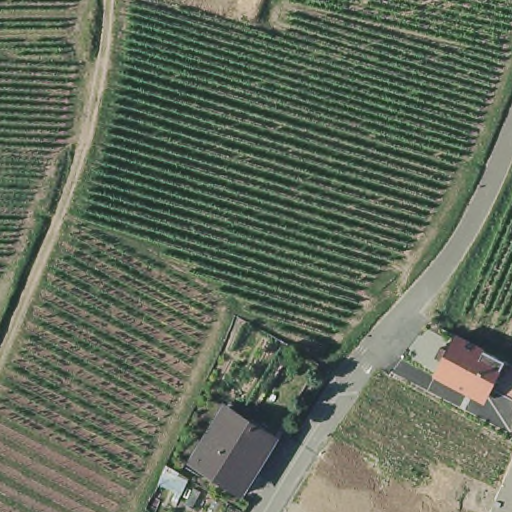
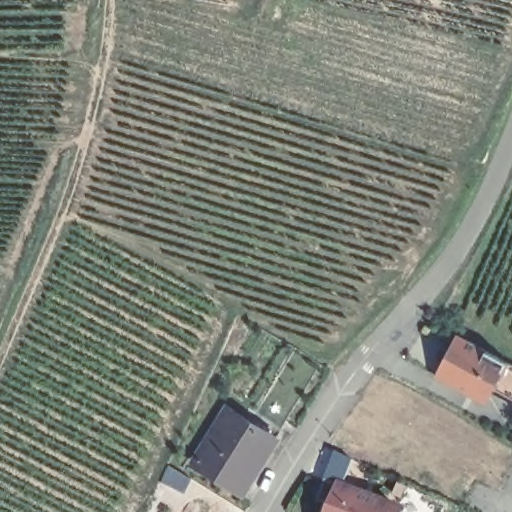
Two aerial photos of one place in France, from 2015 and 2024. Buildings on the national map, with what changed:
unchanged [(483,406),(429,379),(456,330),(512,361),(512,402),(492,392),(483,406)]
unchanged [(284,436),(269,459),(249,489),(244,486),(198,455),(233,402),(279,433),(284,436)]
unchanged [(161,479),(165,472),(166,471),(168,467),(168,466),(168,464),(182,472),(189,477),(181,491),(161,479)]
new [(316,501),(324,480),(399,509),(398,512),(320,512),(323,504),(316,501)]

